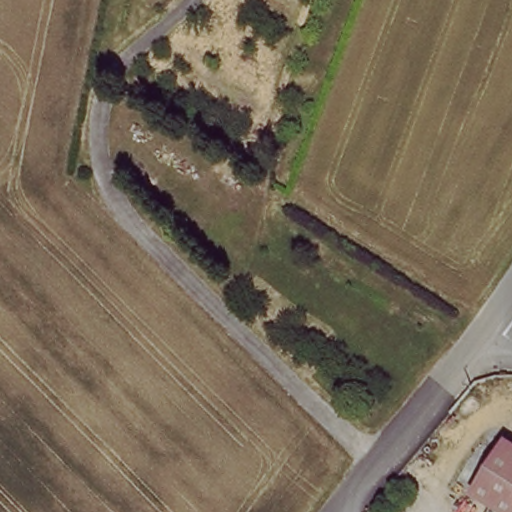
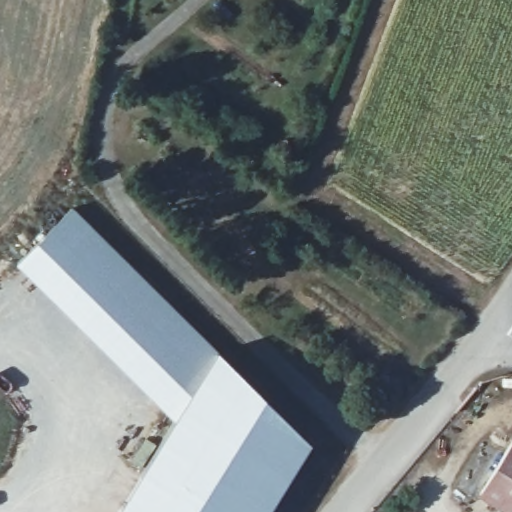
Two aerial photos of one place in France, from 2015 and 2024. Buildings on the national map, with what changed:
new [(71,209),(216,353),(309,443),(267,512),(116,512),(173,421),(15,265),(71,209)]
unchanged [(483,494),(512,448),(512,512),(508,512),(483,494)]

